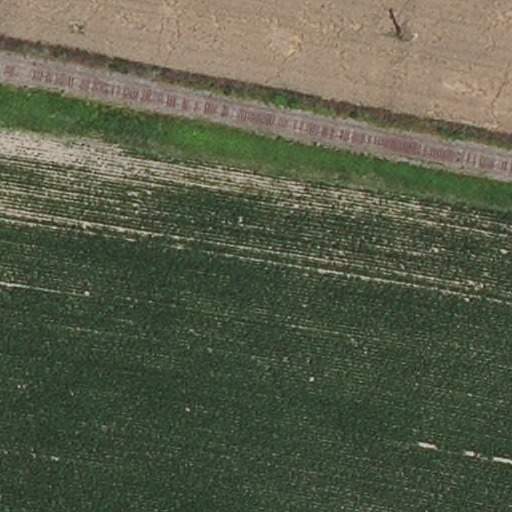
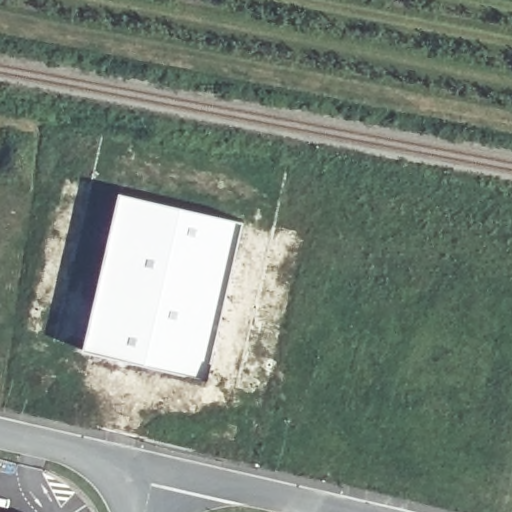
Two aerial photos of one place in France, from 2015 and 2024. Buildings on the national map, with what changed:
new [(204,377),(83,349),(122,192),(242,222),(204,377)]
new [(0,512),(0,510),(12,512),(0,512)]

